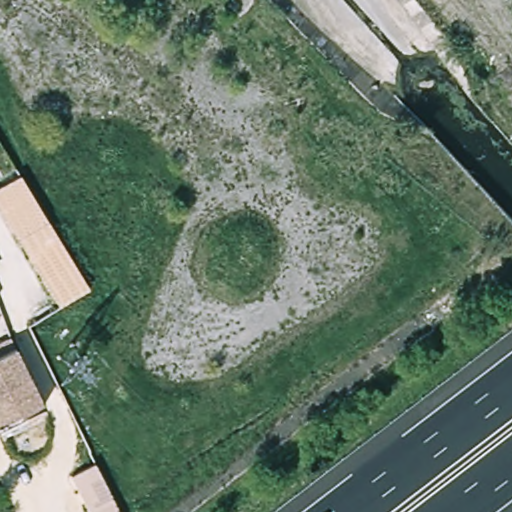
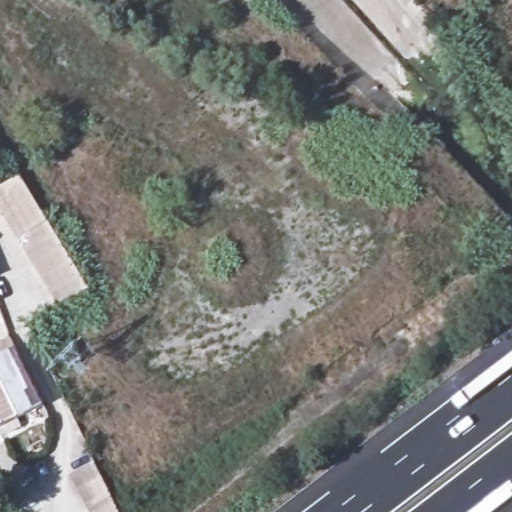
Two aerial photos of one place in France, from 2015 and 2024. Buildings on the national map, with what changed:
unchanged [(0,206),(0,188),(20,175),(90,290),(58,310),(0,206)]
unchanged [(46,411),(0,431),(0,352),(13,346),(46,411)]
unchanged [(73,476),(95,465),(119,512),(90,512),(73,476)]

